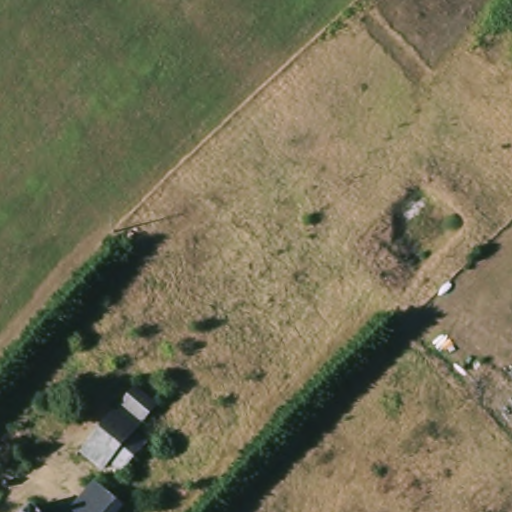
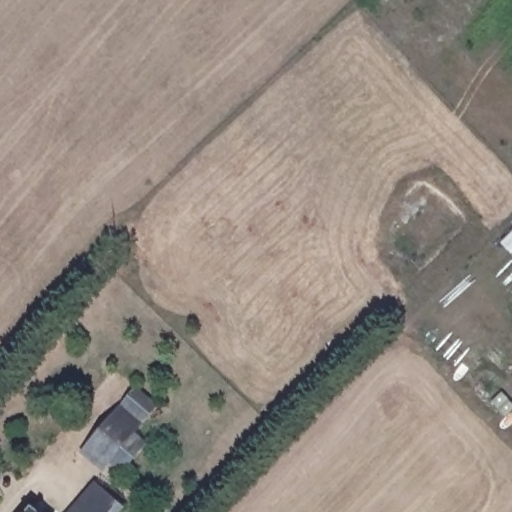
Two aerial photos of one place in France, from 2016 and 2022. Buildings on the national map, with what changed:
unchanged [(103,468),(84,452),(121,407),(139,386),(160,403),(140,424),(135,431),(144,438),(118,470),(109,462),(103,468)]
unchanged [(92,482),(102,489),(116,500),(107,512),(70,512),(92,482)]
unchanged [(36,503),(47,512),(29,512),(36,503)]

